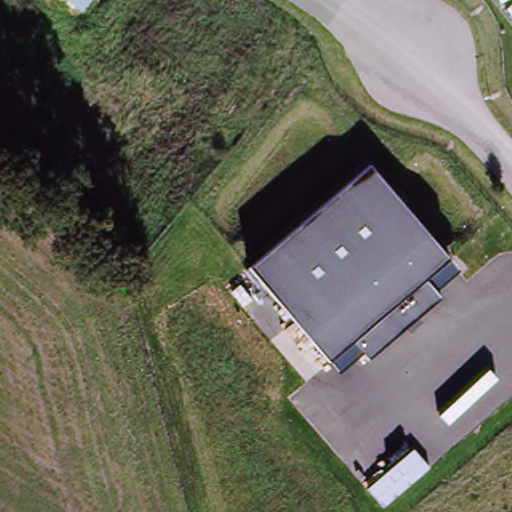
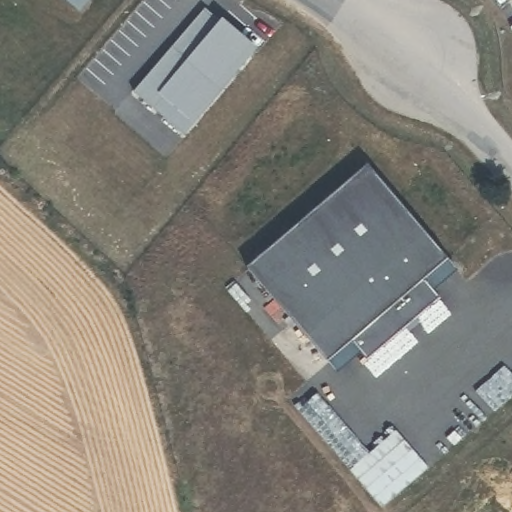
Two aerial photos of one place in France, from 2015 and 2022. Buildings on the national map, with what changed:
unchanged [(68,0),(91,0),(82,11),(68,0)]
new [(204,11),(218,24),(253,53),(183,135),(135,92),(184,35),(204,11)]
unchanged [(459,275),(337,376),(245,268),(365,165),(459,275)]

